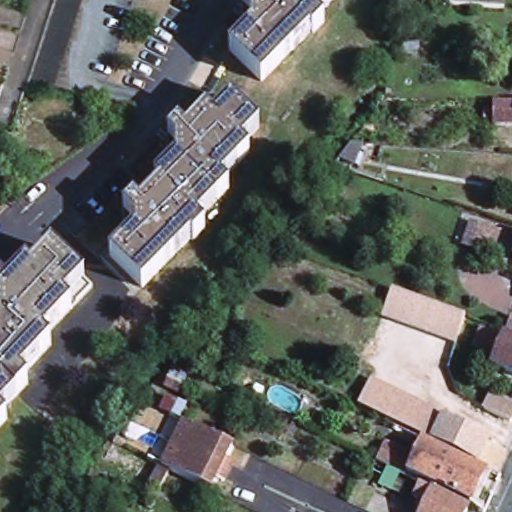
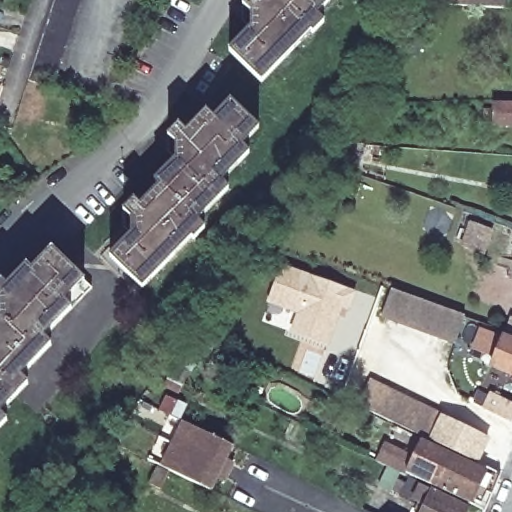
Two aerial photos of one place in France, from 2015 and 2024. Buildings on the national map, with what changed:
unchanged [(55,0),(83,0),(68,49),(54,92),(30,83),(45,32),(55,0)]
unchanged [(322,24),(312,35),(309,35),(260,83),(228,51),(248,31),(249,13),(242,6),(248,0),(332,0),(316,17),(322,24)]
unchanged [(477,8),(410,7),(413,0),(507,0),(507,9),(477,8)]
unchanged [(512,125),(495,125),(495,105),(512,105),(512,125)]
unchanged [(259,135),(242,153),(249,161),(222,188),(228,195),(197,227),(205,236),(194,246),(191,244),(142,292),(112,262),(129,245),(129,226),(121,217),(132,207),(137,212),(158,192),(155,187),(173,170),(175,152),(168,145),(180,135),(189,142),(210,121),(217,127),(234,110),(259,135)]
unchanged [(488,122),(479,122),(479,114),(488,114),(488,122)]
unchanged [(494,229),(484,255),(461,247),(469,221),(494,229)]
unchanged [(93,293),(46,343),(51,350),(21,381),(28,387),(1,416),(9,425),(0,434),(0,322),(7,315),(0,307),(0,292),(3,288),(9,293),(29,272),(33,276),(54,255),(93,293)]
new [(282,263),(356,290),(347,312),(344,311),(328,346),(287,332),(295,313),(265,302),(282,263)]
unchanged [(393,288),(467,315),(458,344),(383,316),(393,288)]
unchanged [(512,333),(511,332),(512,330),(512,333)]
unchanged [(512,380),(492,372),(504,342),(512,345),(512,380)]
unchanged [(430,438),(358,405),(372,378),(444,411),(443,413),(491,437),(478,465),(428,442),(430,438)]
unchanged [(500,417),(474,404),(482,388),(508,402),(500,417)]
unchanged [(219,488),(211,485),(205,497),(204,496),(156,473),(177,430),(216,449),(226,453),(220,466),(227,470),(219,488)]
unchanged [(428,442),(478,465),(486,468),(470,502),(406,471),(422,440),(428,442)]
unchanged [(466,512),(423,512),(430,497),(409,486),(413,478),(434,489),(433,491),(468,507),(466,512)]

